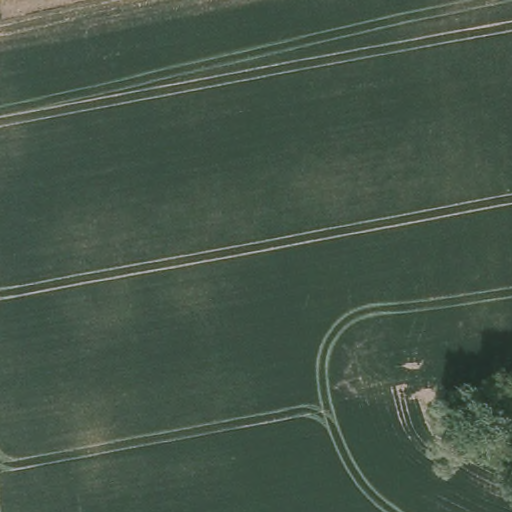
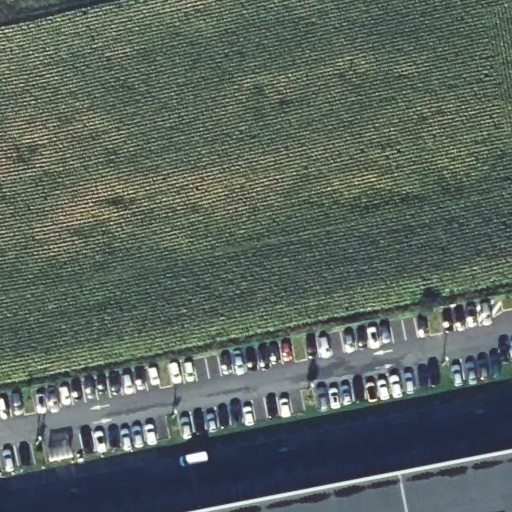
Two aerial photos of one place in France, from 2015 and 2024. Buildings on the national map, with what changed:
new [(512,450),(512,512),(193,512),(512,450)]

